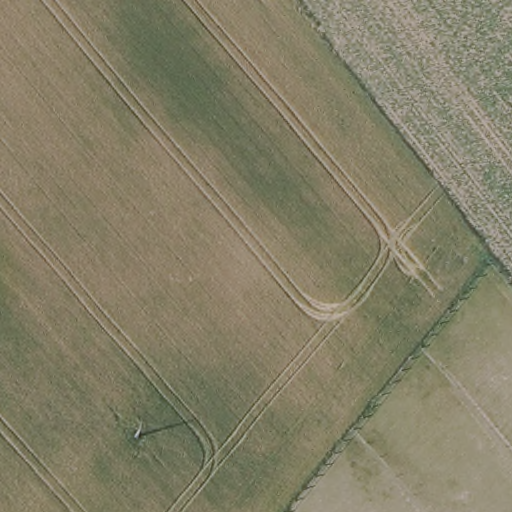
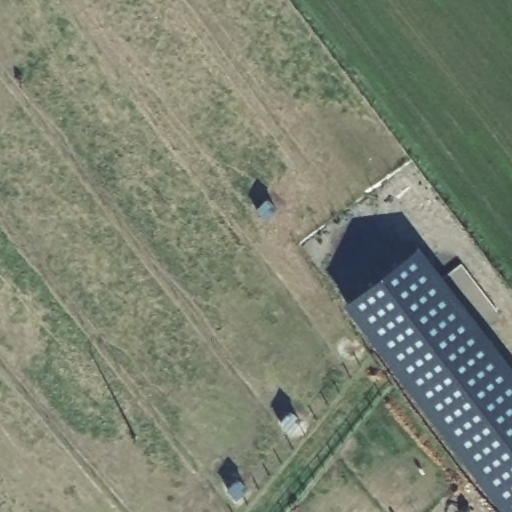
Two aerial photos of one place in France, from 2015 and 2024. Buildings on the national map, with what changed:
new [(419,246),(512,365),(512,512),(505,512),(346,304),(419,246)]

